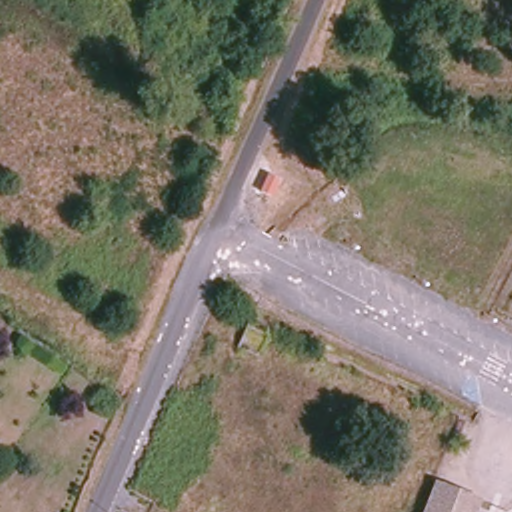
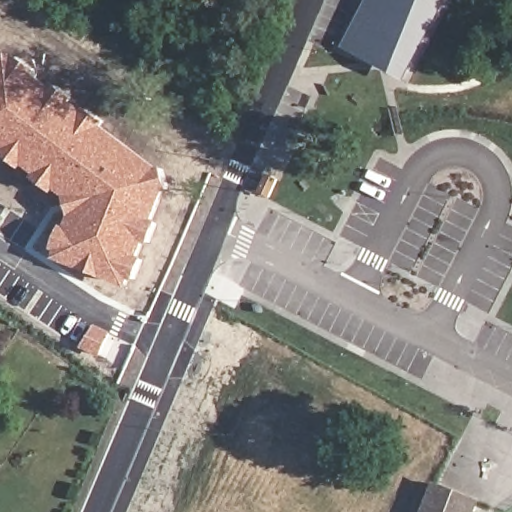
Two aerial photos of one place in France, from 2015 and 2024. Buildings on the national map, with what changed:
new [(405,81),(343,48),(368,0),(448,0),(405,81)]
new [(51,250),(62,225),(65,226),(70,217),(64,197),(55,191),(53,194),(32,179),(35,175),(24,166),(21,170),(0,152),(1,150),(0,148),(0,62),(6,54),(14,59),(16,56),(34,70),(32,74),(49,87),(52,84),(74,100),(71,105),(82,112),(85,109),(106,124),(103,127),(157,167),(162,166),(170,190),(165,192),(154,220),(157,222),(149,245),(145,243),(139,257),(143,258),(134,280),(130,280),(127,288),(54,260),(55,251),(51,250)]
demolished [(240,350),(249,328),(270,338),(260,359),(240,350)]
unchanged [(481,482),(470,512),(420,512),(437,465),(481,482)]

